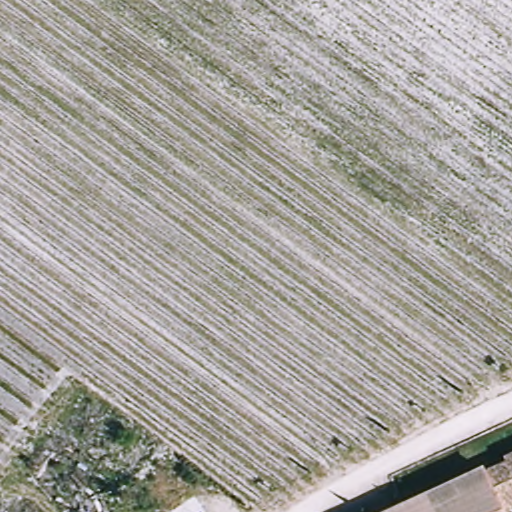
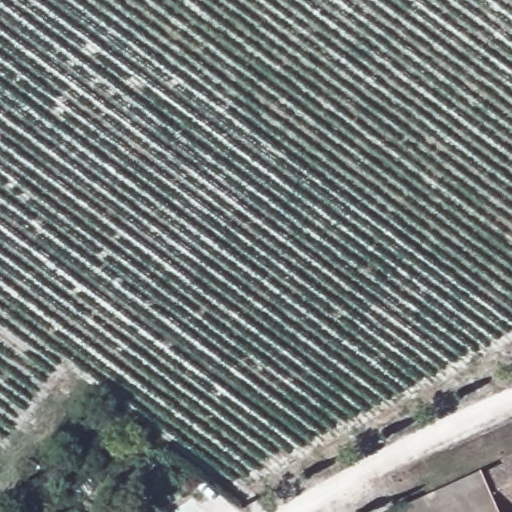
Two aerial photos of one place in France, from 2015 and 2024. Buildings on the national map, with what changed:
unchanged [(507,460),(512,458),(512,510),(507,512),(504,512),(487,475),(508,465),(507,460)]
unchanged [(487,475),(504,512),(396,512),(485,471),(487,475)]

